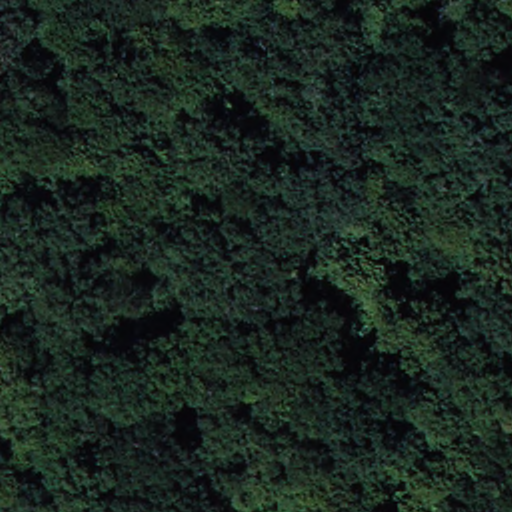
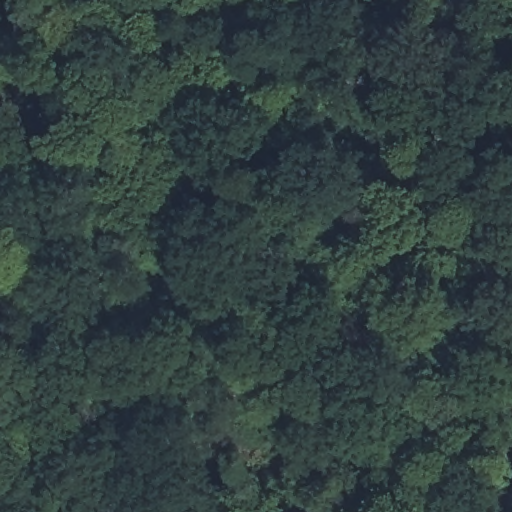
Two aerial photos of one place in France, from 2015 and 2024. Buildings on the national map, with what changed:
[]

